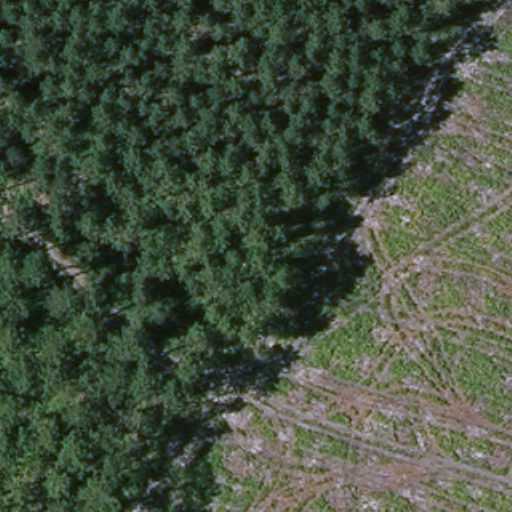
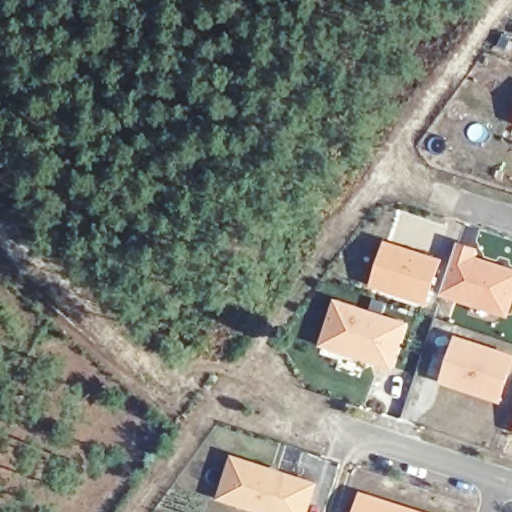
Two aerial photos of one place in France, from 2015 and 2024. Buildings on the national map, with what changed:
new [(443,259),(430,304),(371,285),(386,240),(443,259)]
new [(481,249),(478,257),(512,268),(512,310),(510,318),(441,297),(458,242),(481,249)]
new [(410,323),(393,371),(318,348),(335,299),(410,323)]
new [(512,354),(512,374),(503,403),(440,384),(456,335),(512,354)]
new [(319,483),(311,512),(252,512),(217,501),(232,454),(319,483)]
new [(424,512),(354,512),(361,491),(424,512)]

